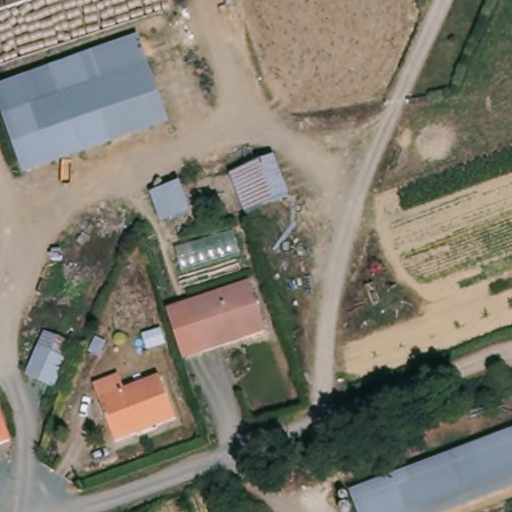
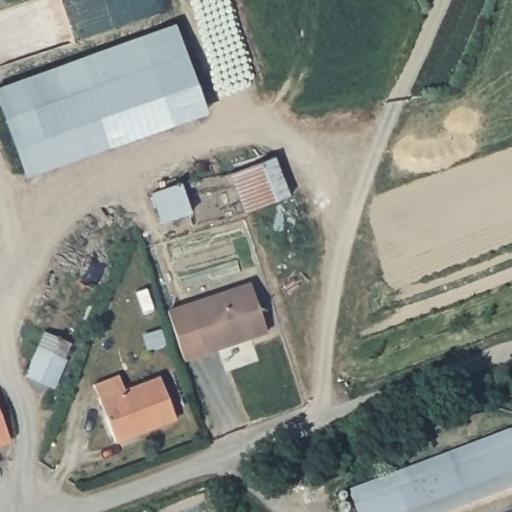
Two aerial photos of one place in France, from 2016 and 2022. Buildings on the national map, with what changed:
new [(177,22),(208,112),(170,125),(140,36),(177,22)]
unchanged [(140,36),(170,125),(29,175),(0,94),(0,87),(140,36)]
unchanged [(281,154),(296,196),(248,213),(234,173),(281,154)]
unchanged [(245,288),(262,337),(197,359),(181,309),(245,288)]
unchanged [(74,351),(63,377),(36,366),(47,339),(74,351)]
unchanged [(120,441),(98,384),(124,374),(130,389),(165,376),(181,418),(120,441)]
unchanged [(14,441),(0,446),(0,403),(14,441)]
unchanged [(350,497),(512,435),(512,486),(442,512),(356,512),(350,497)]

